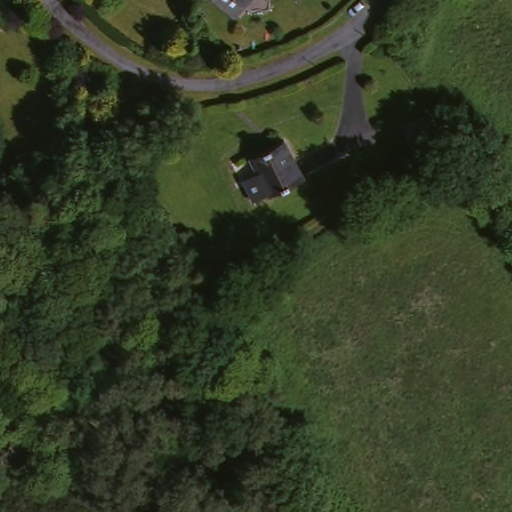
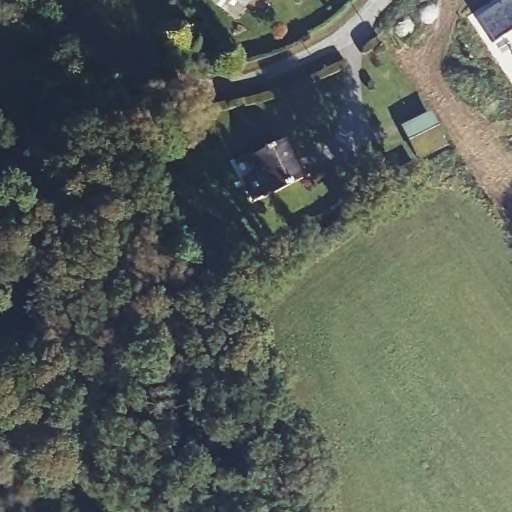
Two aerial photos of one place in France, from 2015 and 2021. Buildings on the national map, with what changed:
unchanged [(200,5),(206,0),(246,0),(223,24),(200,5)]
new [(512,0),(512,27),(490,41),(475,16),(499,0),(512,0)]
unchanged [(430,134),(401,148),(388,121),(414,107),(430,134)]
unchanged [(301,175),(266,196),(264,193),(249,202),(237,182),(251,172),(244,160),(277,140),(301,175)]

